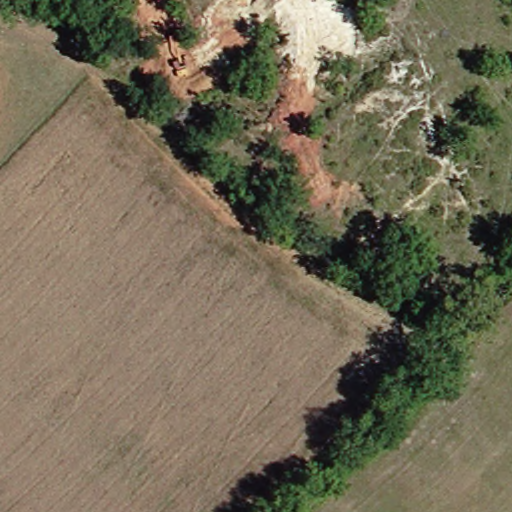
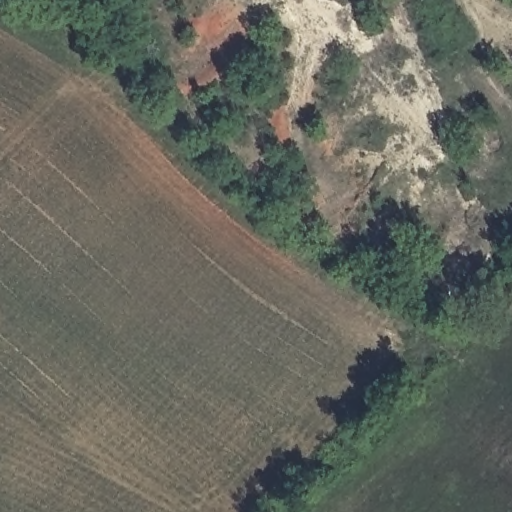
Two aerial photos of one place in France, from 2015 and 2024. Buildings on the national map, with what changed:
[]

